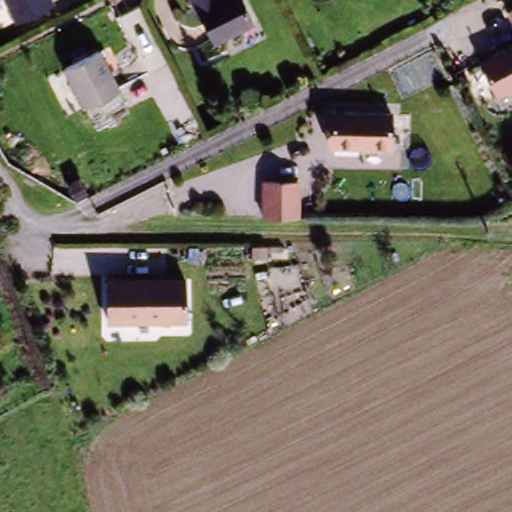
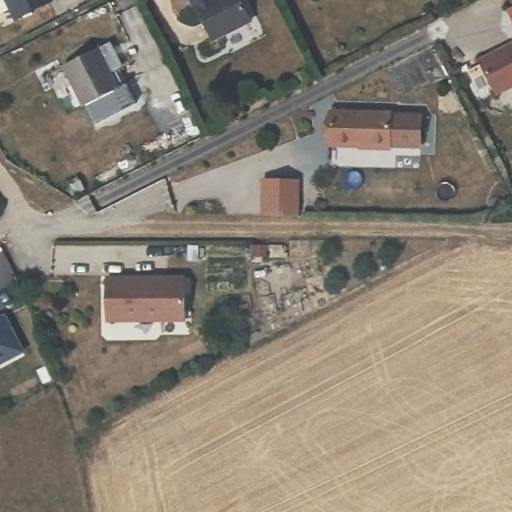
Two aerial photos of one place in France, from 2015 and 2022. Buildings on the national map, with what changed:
unchanged [(17,17),(9,0),(53,0),(54,1),(17,17)]
unchanged [(239,0),(251,25),(210,45),(192,6),(204,0),(239,0)]
unchanged [(509,13),(512,12),(512,18),(509,13)]
unchanged [(495,97),(479,60),(512,44),(512,89),(495,97)]
unchanged [(98,45),(117,86),(86,101),(66,61),(98,45)]
unchanged [(389,151),(325,145),(328,110),(390,114),(389,151)]
unchanged [(297,217),(260,218),(263,179),(299,180),(297,217)]
unchanged [(185,323),(108,321),(108,280),(184,276),(185,323)]
new [(0,364),(0,320),(1,319),(19,353),(0,364)]

